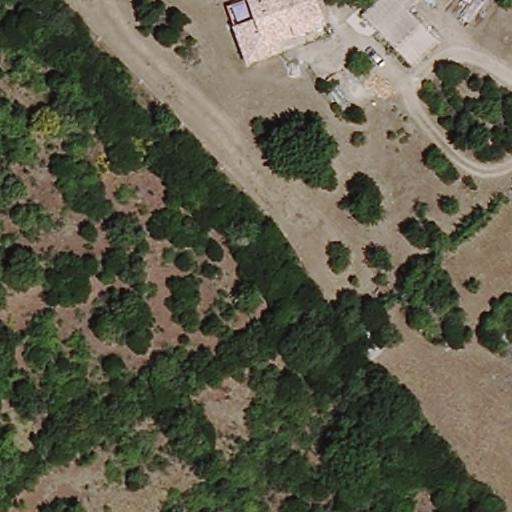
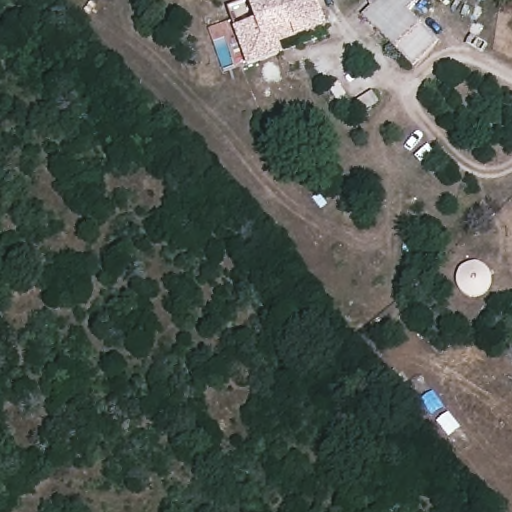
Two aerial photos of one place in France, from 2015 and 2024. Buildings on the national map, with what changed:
unchanged [(315,0),(326,33),(284,53),(247,67),(226,10),(246,2),(253,0),(315,0)]
unchanged [(360,19),(369,10),(366,7),(373,0),(417,0),(402,15),(433,46),(409,70),(360,19)]

